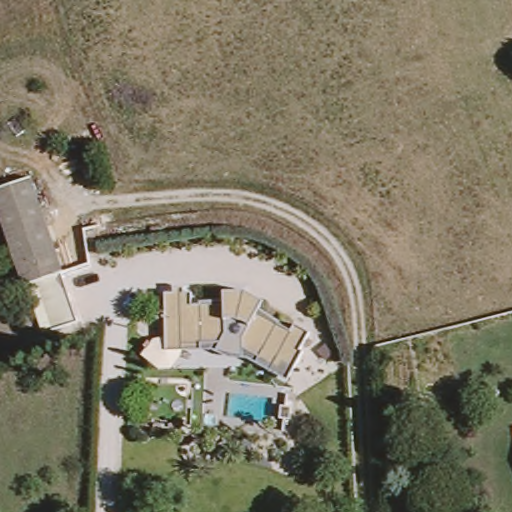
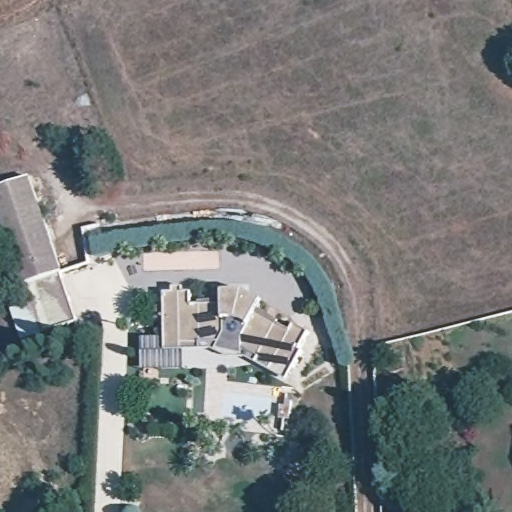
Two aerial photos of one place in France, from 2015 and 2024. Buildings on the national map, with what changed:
unchanged [(68,265),(27,281),(0,212),(0,183),(32,171),(68,265)]
unchanged [(193,310),(228,310),(230,298),(246,297),(270,306),(267,318),(287,327),(290,322),(309,332),(302,350),(307,351),(296,378),(265,360),(234,354),(235,348),(197,345),(197,351),(165,351),(160,297),(192,295),(193,310)]
unchanged [(304,395),(303,415),(288,415),(289,395),(304,395)]

